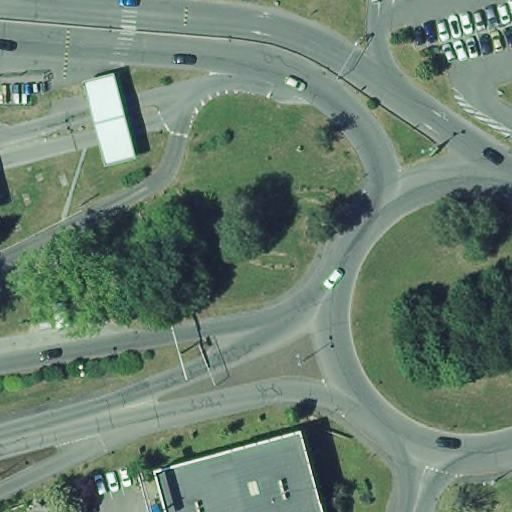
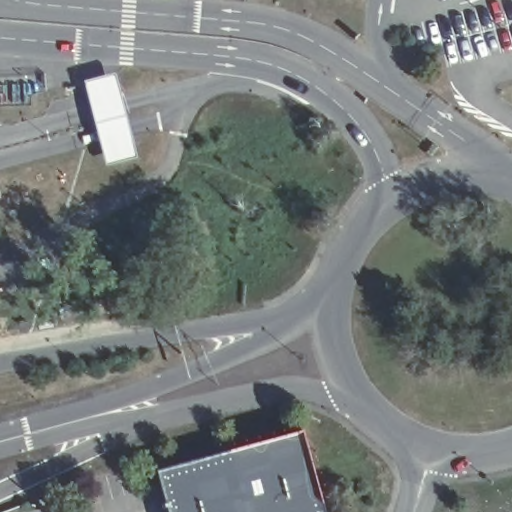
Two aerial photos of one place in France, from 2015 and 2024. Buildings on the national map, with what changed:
unchanged [(136,160),(105,169),(82,84),(113,75),(136,160)]
unchanged [(0,213),(0,209),(1,213),(0,213)]
unchanged [(76,318),(55,322),(51,306),(73,302),(76,318)]
unchanged [(160,467),(250,441),(310,424),(333,512),(173,512),(160,467)]

